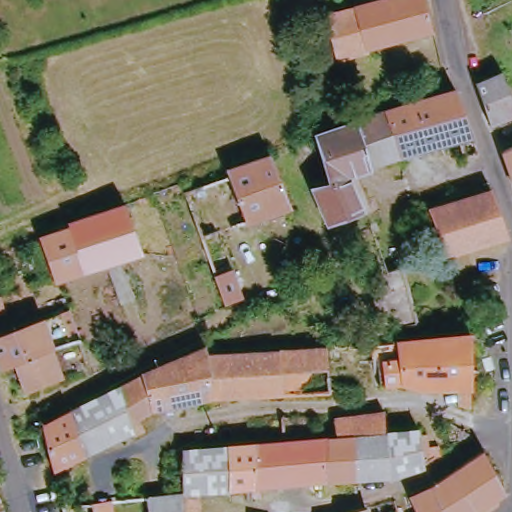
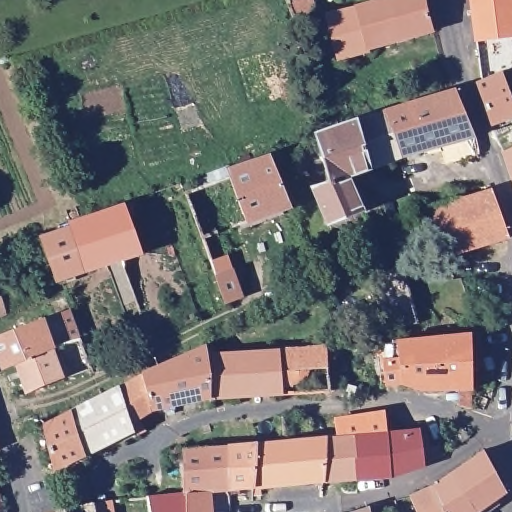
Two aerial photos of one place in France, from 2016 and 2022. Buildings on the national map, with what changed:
unchanged [(291,21),(282,5),(283,5),(300,0),(309,0),(315,14),(291,21)]
unchanged [(425,27),(362,49),(363,54),(332,63),(317,19),(373,0),(418,0),(425,27)]
new [(469,0),(512,0),(512,37),(475,41),(469,0)]
unchanged [(470,80),(495,69),(511,111),(483,123),(470,80)]
unchanged [(398,153),(380,106),(443,84),(470,148),(454,154),(447,137),(398,153)]
unchanged [(380,106),(398,153),(367,164),(353,115),(380,106)]
unchanged [(325,180),(309,132),(308,129),(311,129),(353,115),(367,164),(343,173),(347,189),(350,207),(313,217),(312,212),(304,187),(325,180)]
unchanged [(512,146),(512,184),(500,152),(512,146)]
unchanged [(276,149),(292,197),(245,213),(227,166),(276,149)]
unchanged [(442,253),(437,254),(422,213),(489,191),(505,234),(442,253)]
unchanged [(68,226),(65,220),(82,214),(123,200),(140,250),(55,278),(39,236),(68,226)]
unchanged [(211,254),(227,247),(242,288),(226,296),(211,254)]
unchanged [(407,309),(400,312),(398,306),(373,312),(364,275),(395,266),(407,309)]
unchanged [(18,389),(7,358),(0,361),(0,328),(10,324),(39,314),(50,341),(57,369),(18,389)]
unchanged [(467,334),(468,342),(470,381),(421,387),(401,380),(397,341),(467,334)]
unchanged [(270,349),(316,345),(322,387),(275,391),(270,349)]
unchanged [(192,358),(225,352),(270,349),(275,391),(202,399),(192,358)]
unchanged [(131,376),(190,352),(192,358),(202,399),(202,400),(142,413),(131,376)]
unchanged [(120,427),(107,387),(131,376),(142,413),(130,421),(134,432),(123,435),(120,427)]
unchanged [(63,410),(101,389),(107,387),(120,427),(80,450),(63,410)]
unchanged [(38,425),(63,410),(80,450),(49,469),(38,425)]
unchanged [(331,418),(380,411),(384,429),(417,424),(420,467),(385,479),(353,481),(318,483),(320,439),(334,437),(331,418)]
unchanged [(218,453),(224,452),(252,448),(287,443),(320,439),(318,483),(318,496),(302,496),(302,482),(255,483),(227,488),(183,494),(183,459),(218,453)]
unchanged [(427,490),(480,455),(505,480),(464,512),(408,512),(402,495),(427,490)]
unchanged [(183,494),(183,512),(146,512),(145,499),(183,494)]
unchanged [(2,511),(1,512),(0,512),(0,505),(2,511)]
unchanged [(359,506),(361,512),(349,512),(355,508),(359,506)]
unchanged [(273,511),(273,512),(252,512),(252,511),(273,511)]

